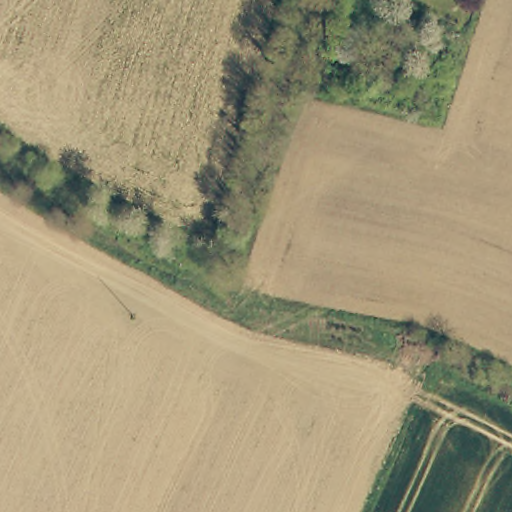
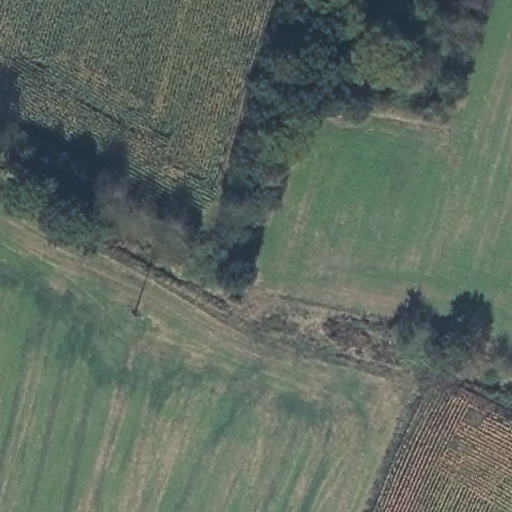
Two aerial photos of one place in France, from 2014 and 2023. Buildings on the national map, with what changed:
[]

